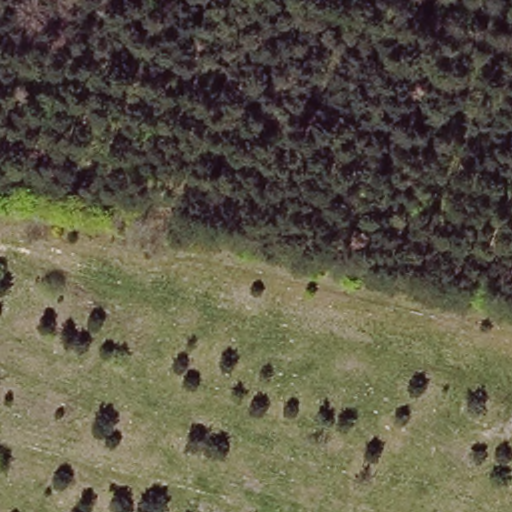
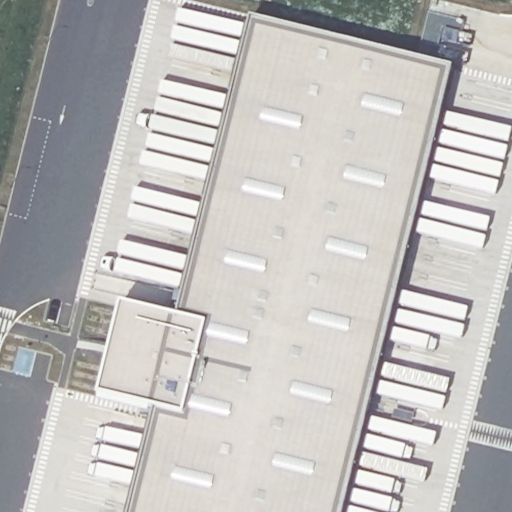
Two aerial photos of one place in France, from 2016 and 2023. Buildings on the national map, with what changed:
new [(119,304),(176,318),(250,19),(451,71),(342,512),(128,512),(153,410),(98,396),(119,304)]

